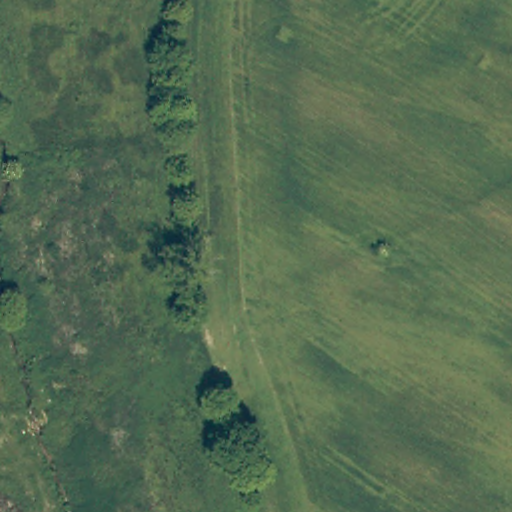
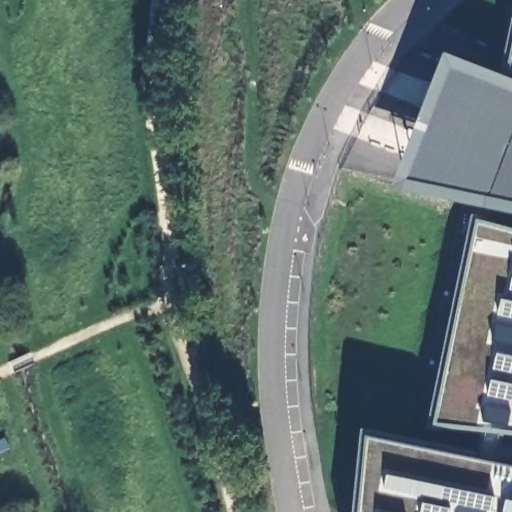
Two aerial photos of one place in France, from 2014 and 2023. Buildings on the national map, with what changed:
new [(390,184),(443,50),(497,71),(512,4),(512,211),(390,184)]
new [(361,426),(476,451),(483,431),(443,426),(441,429),(427,428),(470,213),(476,217),(512,228),(512,431),(502,430),(494,460),(512,464),(512,512),(351,512),(361,426)]

